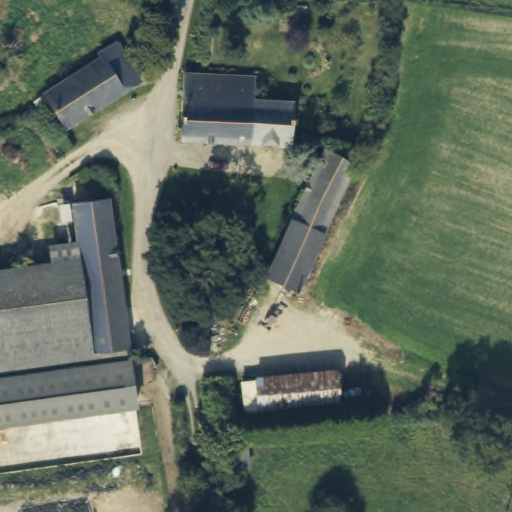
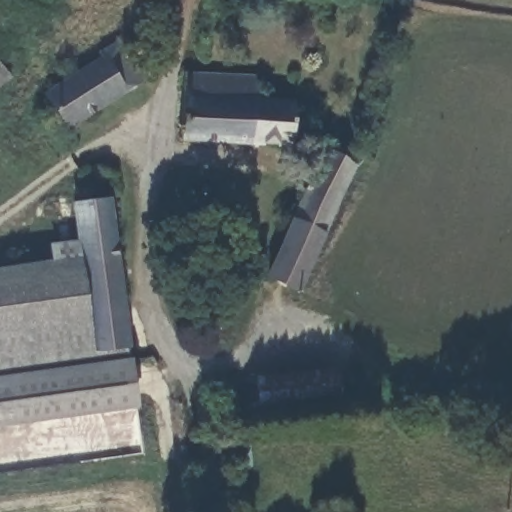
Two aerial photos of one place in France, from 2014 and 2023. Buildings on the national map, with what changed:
unchanged [(139,81),(64,124),(45,89),(100,57),(98,54),(118,41),(139,81)]
unchanged [(0,79),(0,52),(13,68),(0,79)]
unchanged [(180,134),(183,73),(255,78),(255,99),(292,104),(288,146),(180,134)]
unchanged [(292,287),(267,276),(318,154),(347,166),(317,233),(303,274),(292,287)]
unchanged [(106,171),(109,177),(106,184),(100,187),(94,185),(90,179),(91,174),(95,169),(101,167),(106,171)]
unchanged [(109,199),(128,349),(134,409),(0,426),(0,270),(54,264),(53,247),(79,244),(74,204),(109,199)]
unchanged [(329,378),(332,414),(255,419),(252,384),(329,378)]

